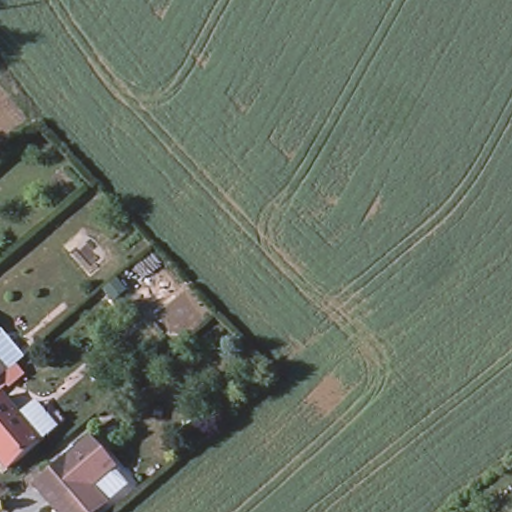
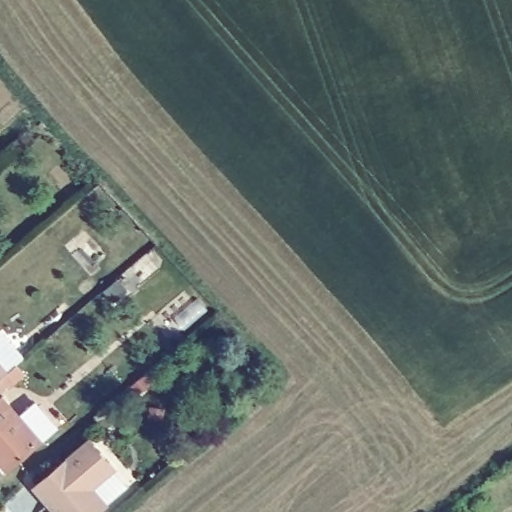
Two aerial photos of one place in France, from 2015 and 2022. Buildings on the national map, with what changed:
unchanged [(15,390),(12,388),(0,398),(0,361),(10,373),(12,376),(20,386),(15,390)]
unchanged [(0,456),(0,407),(8,401),(25,421),(40,407),(62,432),(47,445),(15,473),(0,456)]
unchanged [(30,485),(86,438),(110,466),(87,486),(102,503),(91,512),(53,512),(46,504),(30,485)]

